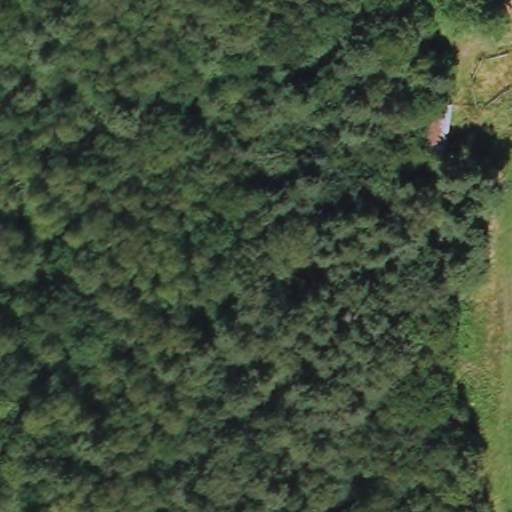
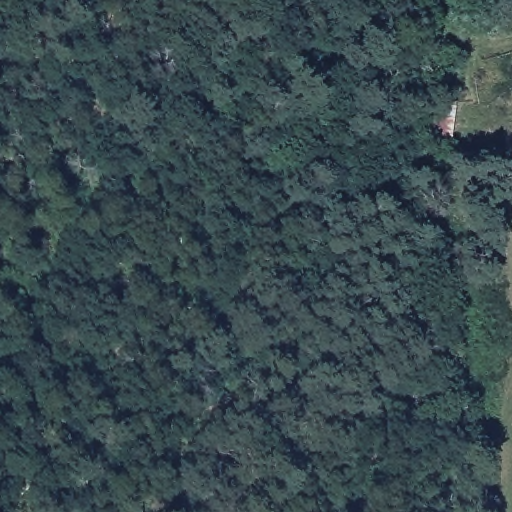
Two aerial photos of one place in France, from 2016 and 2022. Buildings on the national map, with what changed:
unchanged [(458,108),(455,150),(423,147),(427,107),(458,108)]

